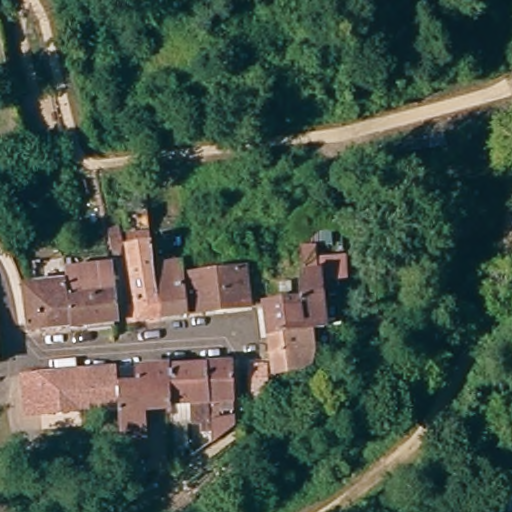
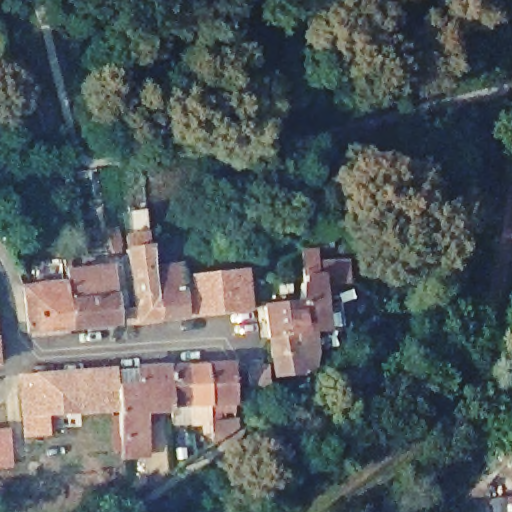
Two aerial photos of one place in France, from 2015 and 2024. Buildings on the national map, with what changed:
unchanged [(75,33),(78,47),(66,50),(62,35),(75,33)]
unchanged [(90,90),(93,106),(77,110),(74,94),(90,90)]
unchanged [(117,230),(121,253),(113,254),(109,232),(117,230)]
unchanged [(155,270),(161,319),(127,323),(126,310),(135,309),(125,239),(150,235),(155,270)]
unchanged [(350,278),(324,280),(329,329),(313,332),(274,334),(272,303),(306,299),(311,289),(308,265),(307,249),(320,248),(322,264),(348,261),(350,278)]
unchanged [(188,317),(161,319),(155,270),(182,268),(188,317)]
unchanged [(109,269),(117,324),(71,329),(67,281),(66,273),(109,269)]
unchanged [(21,314),(19,294),(14,295),(12,273),(28,272),(30,280),(28,280),(29,285),(36,284),(67,281),(71,329),(40,333),(30,334),(27,314),(21,314)]
unchanged [(188,280),(212,278),(244,274),(247,310),(216,314),(192,316),(188,280)]
unchanged [(315,356),(316,361),(312,361),(312,364),(302,372),(298,372),(299,383),(283,385),(282,382),(281,377),(278,377),(276,358),(274,334),(313,332),(315,356)]
unchanged [(120,453),(117,405),(117,389),(139,389),(138,364),(170,363),(189,362),(207,361),(232,359),(235,398),(235,408),(211,409),(211,414),(197,415),(197,410),(192,410),(191,399),(173,401),(173,405),(143,407),(145,450),(120,453)]
unchanged [(24,404),(22,372),(116,364),(117,389),(117,405),(47,409),(24,411),(24,404)]
unchanged [(211,418),(236,416),(237,426),(213,441),(205,446),(202,418),(211,418)]
new [(15,469),(0,470),(0,429),(11,427),(15,469)]
unchanged [(180,439),(192,438),(195,467),(182,474),(180,439)]

